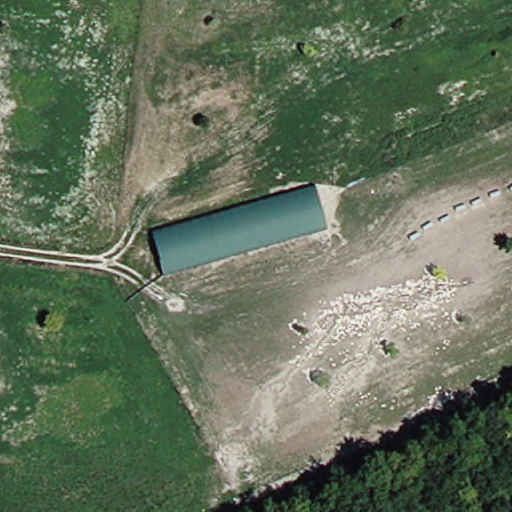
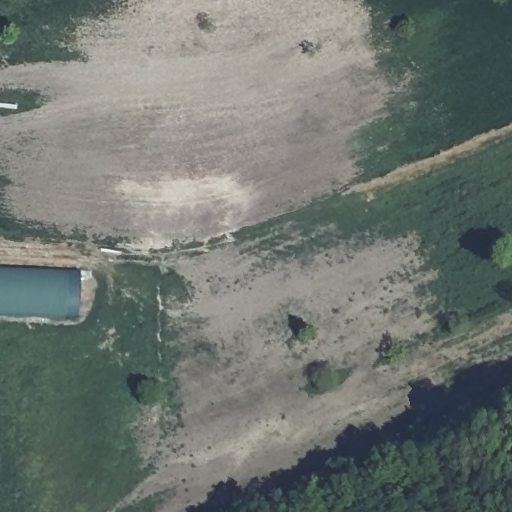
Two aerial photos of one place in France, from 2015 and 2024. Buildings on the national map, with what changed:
demolished [(317,184),(326,226),(164,272),(155,230),(317,184)]
new [(0,317),(0,270),(76,272),(75,320),(0,317)]

